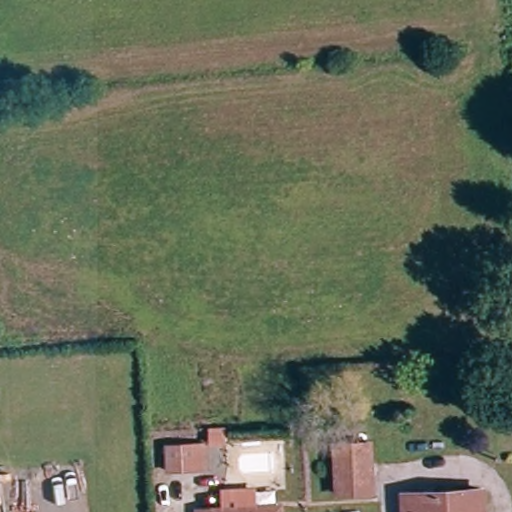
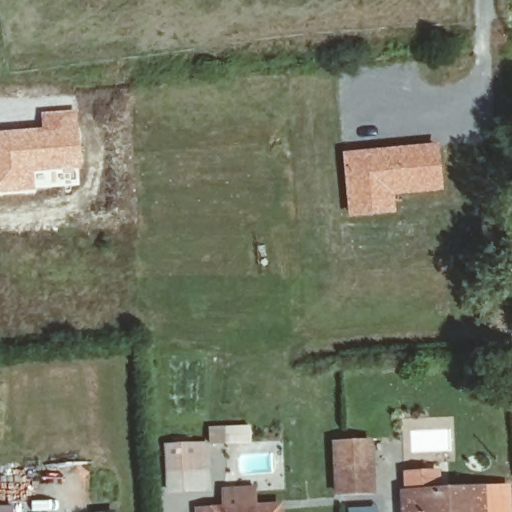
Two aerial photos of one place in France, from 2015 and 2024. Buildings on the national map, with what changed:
new [(35,191),(0,195),(0,131),(40,128),(40,113),(77,111),(80,169),(80,185),(35,191)]
new [(438,143),(443,192),(395,197),(396,215),(347,219),(341,151),(438,143)]
unchanged [(202,442),(204,467),(168,469),(166,444),(202,442)]
unchanged [(342,500),(335,446),(365,442),(371,497),(342,500)]
unchanged [(405,496),(485,494),(486,512),(407,512),(405,496)]
unchanged [(197,510),(282,505),(282,512),(198,512),(197,510)]

